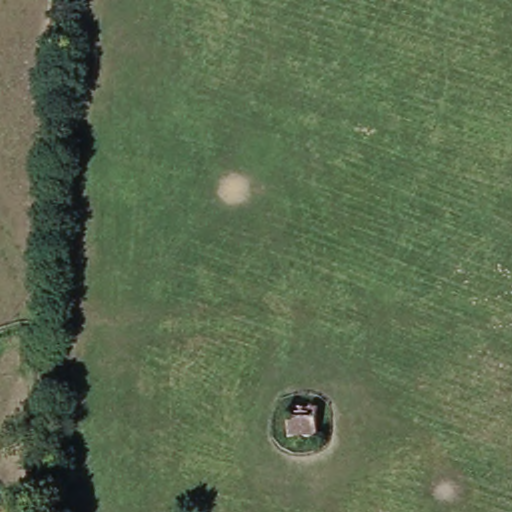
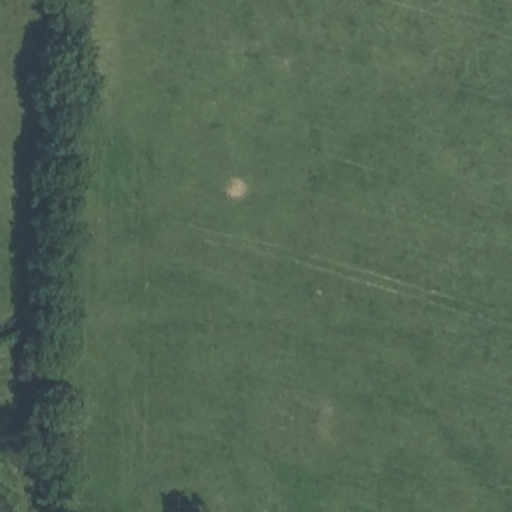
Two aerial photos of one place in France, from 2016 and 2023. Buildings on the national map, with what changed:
unchanged [(282,408),(316,410),(317,447),(285,444),(282,408)]

